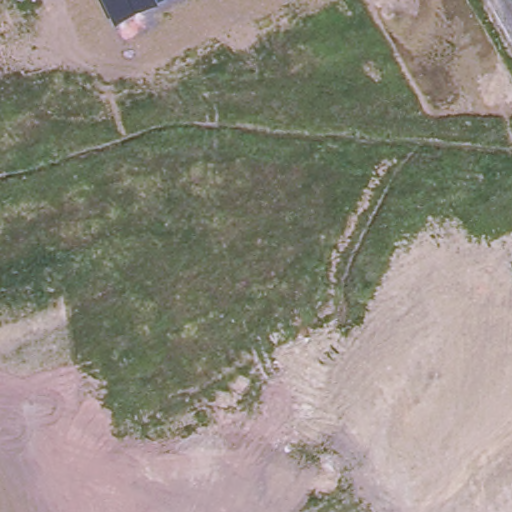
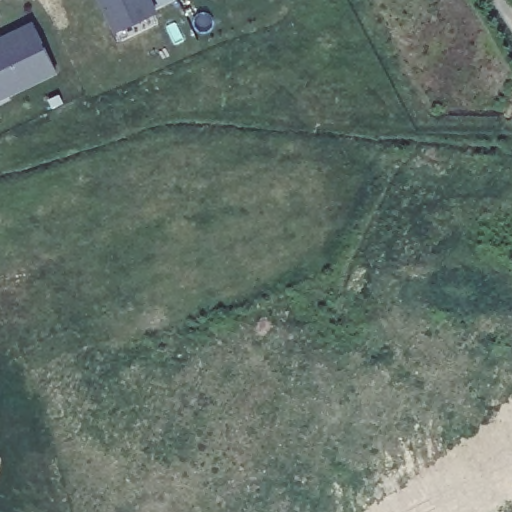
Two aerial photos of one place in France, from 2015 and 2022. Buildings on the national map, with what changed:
unchanged [(160,11),(113,32),(99,0),(174,0),(158,8),(160,11)]
new [(0,99),(0,36),(32,20),(57,72),(0,99)]

